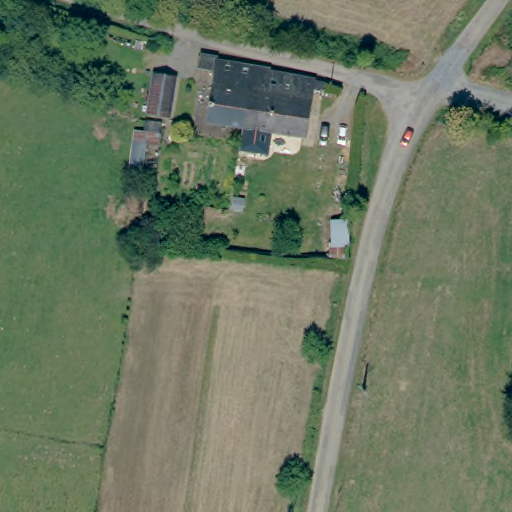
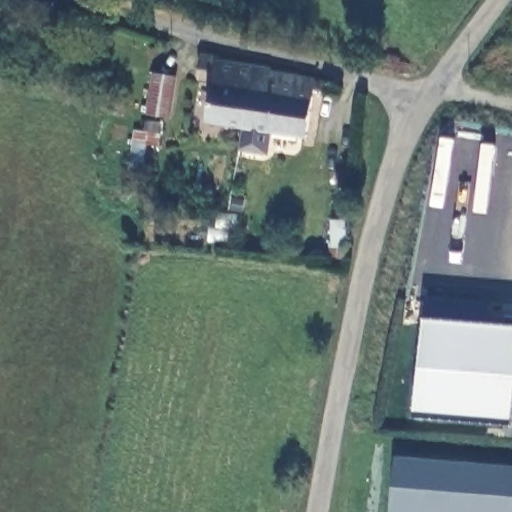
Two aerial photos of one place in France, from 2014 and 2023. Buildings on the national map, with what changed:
unchanged [(0,6),(0,0),(1,0),(0,6)]
unchanged [(215,64),(216,68),(265,77),(270,80),(267,102),(245,99),(244,106),(239,133),(204,127),(213,80),(202,78),(205,61),(215,64)]
unchanged [(154,116),(140,114),(129,113),(135,72),(145,74),(160,77),(154,116)]
unchanged [(305,145),(239,133),(244,106),(245,99),(267,102),(270,80),(315,89),(305,145)]
unchanged [(268,200),(264,223),(249,221),(252,198),(255,199),(268,200)]
unchanged [(333,255),(329,255),(328,271),(313,270),(318,230),(335,232),(333,255)]
new [(414,415),(424,317),(512,325),(512,424),(414,415)]
new [(512,465),(512,512),(392,512),(396,456),(512,465)]

